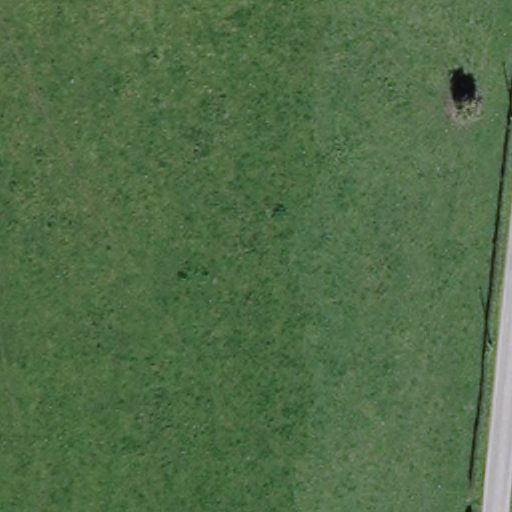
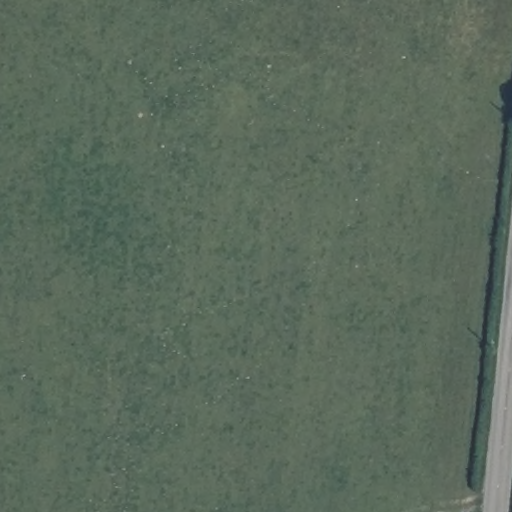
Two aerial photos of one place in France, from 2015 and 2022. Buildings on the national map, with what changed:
[]

